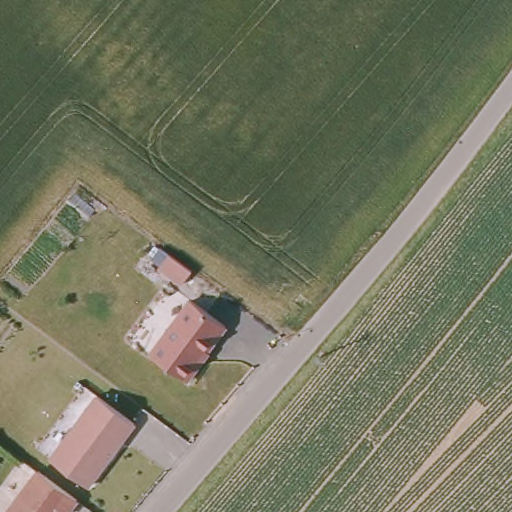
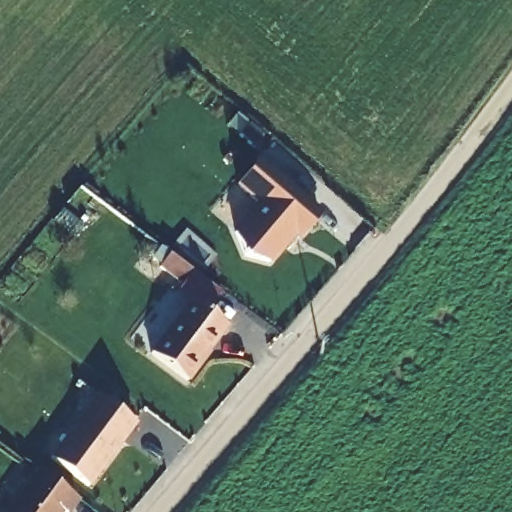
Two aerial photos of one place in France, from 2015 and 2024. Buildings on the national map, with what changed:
new [(284,244),(269,261),(245,255),(235,232),(260,204),(238,186),(259,162),(319,213),(299,237),(289,248),(284,244)]
unchanged [(188,270),(178,284),(155,267),(165,253),(188,270)]
unchanged [(186,300),(221,326),(194,363),(195,364),(182,381),(146,354),(186,300)]
unchanged [(83,487),(46,459),(93,396),(130,423),(83,487)]
unchanged [(69,512),(63,512),(8,512),(39,471),(78,499),(69,512)]

